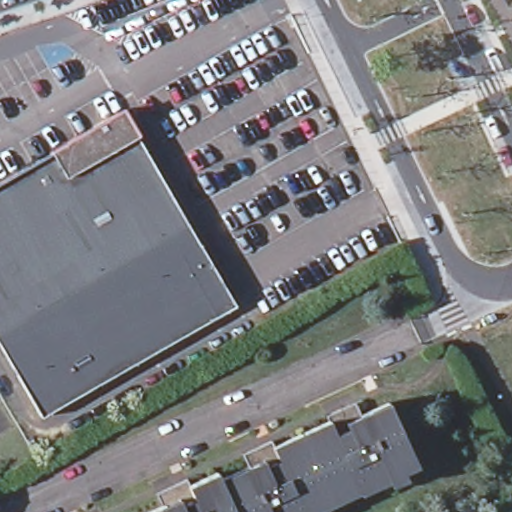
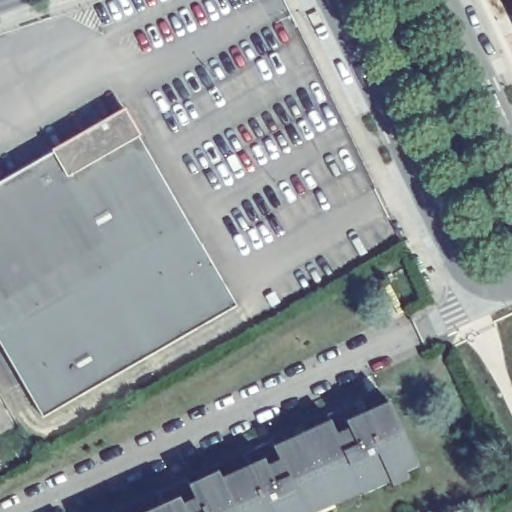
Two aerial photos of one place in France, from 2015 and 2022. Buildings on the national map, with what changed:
unchanged [(214,318),(42,419),(0,347),(0,181),(122,110),(200,246),(180,256),(214,318)]
unchanged [(402,474),(405,484),(390,489),(330,512),(149,512),(177,499),(181,506),(193,500),(188,483),(215,472),(220,480),(258,460),(263,470),(278,461),(272,445),(325,422),(334,436),(347,429),(343,421),(387,404),(415,469),(402,474)]

